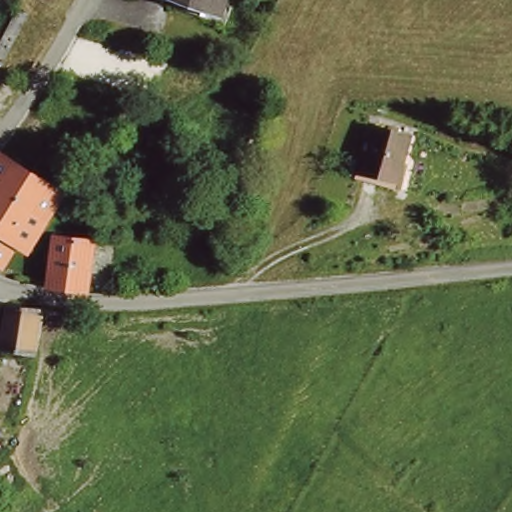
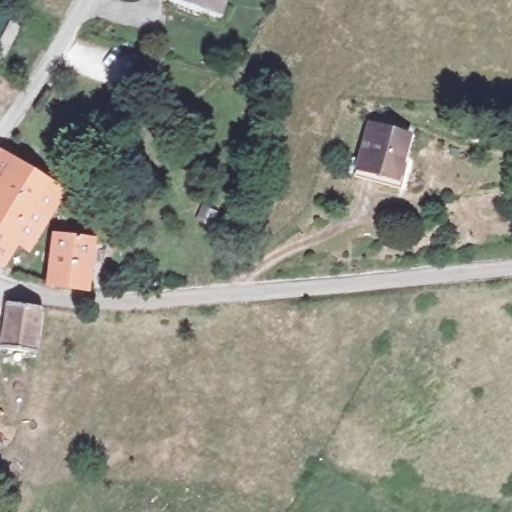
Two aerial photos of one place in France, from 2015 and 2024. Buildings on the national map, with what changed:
unchanged [(170,0),(219,0),(214,13),(170,0)]
unchanged [(25,14),(36,21),(13,64),(0,59),(25,14)]
unchanged [(369,129),(410,137),(399,189),(359,181),(369,129)]
unchanged [(47,201),(41,209),(0,182),(0,147),(56,188),(69,198),(60,210),(47,201)]
unchanged [(15,235),(0,260),(0,182),(41,209),(24,239),(15,235)]
unchanged [(59,237),(94,245),(79,295),(43,287),(59,237)]
unchanged [(0,356),(0,334),(19,300),(45,314),(18,366),(0,356)]

